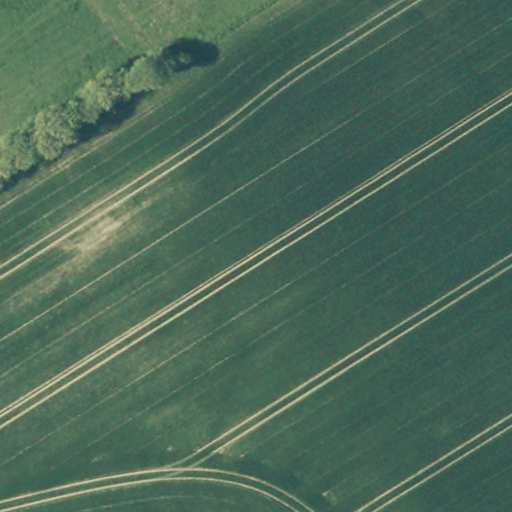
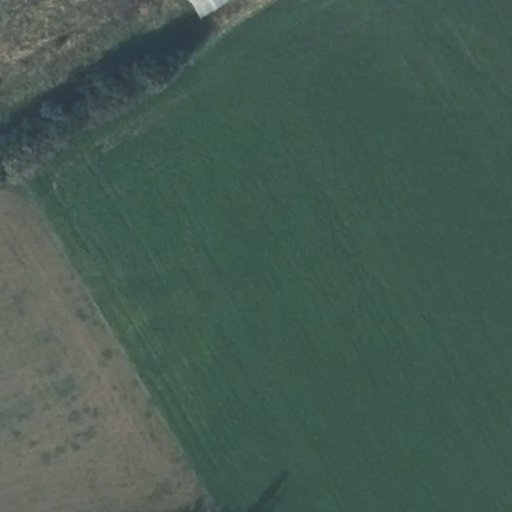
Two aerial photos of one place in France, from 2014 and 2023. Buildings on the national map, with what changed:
new [(189,0),(232,0),(202,19),(189,0)]

